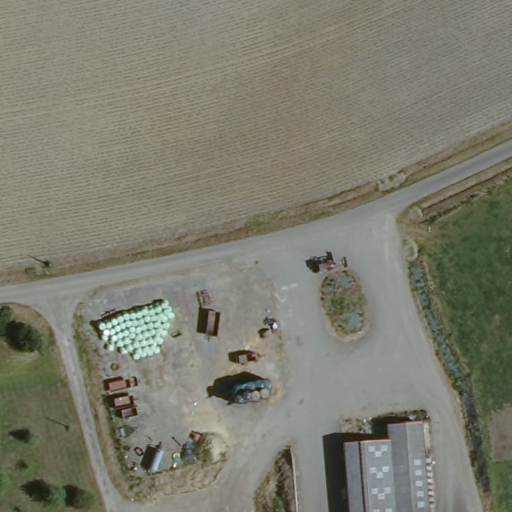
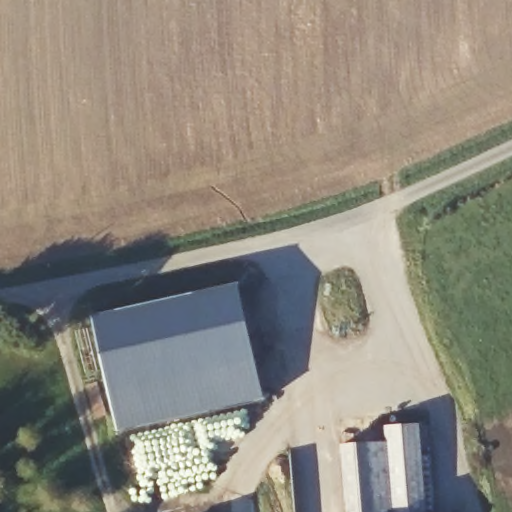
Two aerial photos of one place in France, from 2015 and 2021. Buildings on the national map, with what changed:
new [(242,282),(268,399),(120,430),(95,313),(242,282)]
unchanged [(386,443),(384,428),(418,424),(425,512),(344,512),(340,447),(386,443)]

